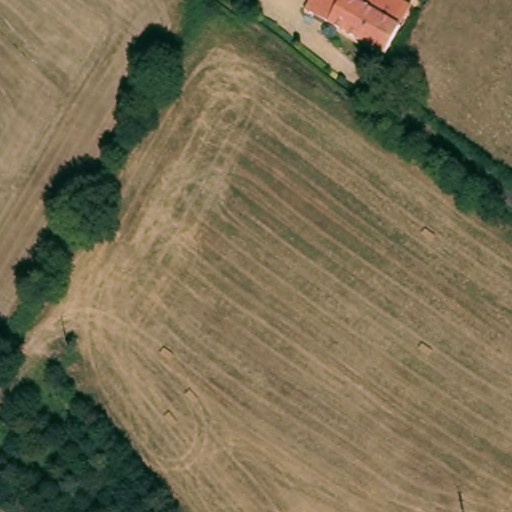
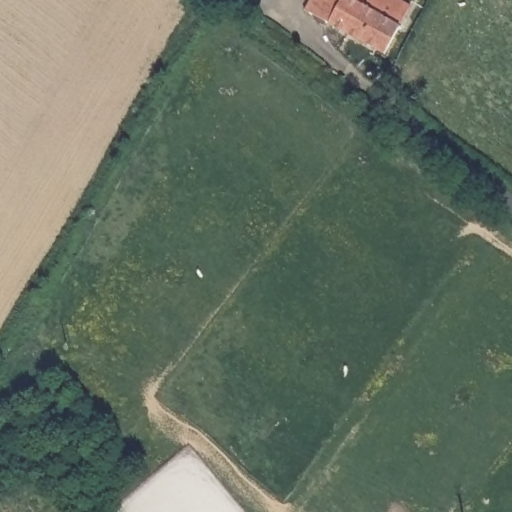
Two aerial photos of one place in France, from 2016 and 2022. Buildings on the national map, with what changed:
unchanged [(374,52),(300,9),(305,0),(389,0),(405,9),(374,52)]

